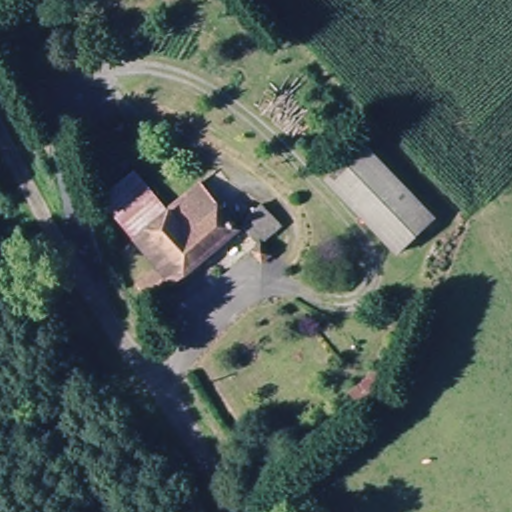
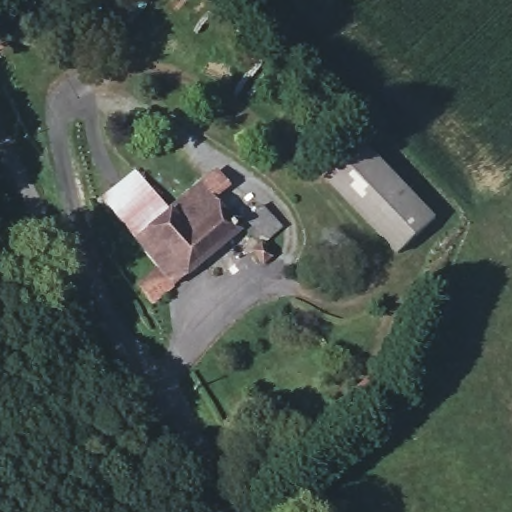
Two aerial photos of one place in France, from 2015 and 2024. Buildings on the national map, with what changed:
unchanged [(364,142),(428,221),(393,256),(325,178),(364,142)]
unchanged [(132,289),(152,272),(97,204),(128,177),(161,215),(194,187),(233,233),(146,306),(132,289)]
unchanged [(272,216),(247,239),(238,229),(231,220),(256,196),(272,216)]
unchanged [(240,250),(249,242),(266,261),(257,271),(240,250)]
unchanged [(370,416),(358,400),(386,380),(398,395),(370,416)]

